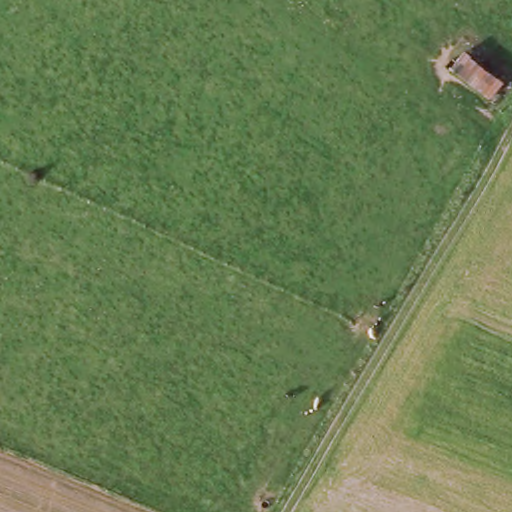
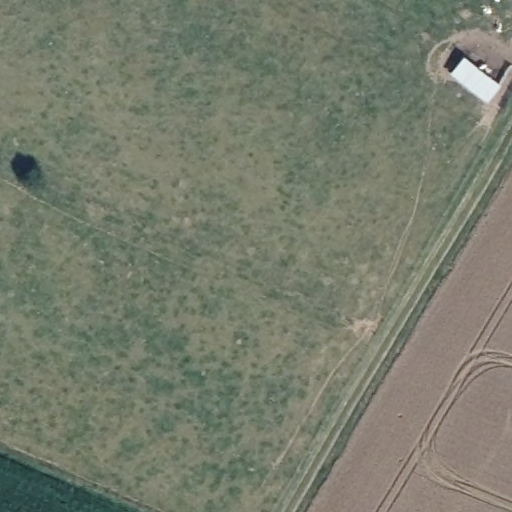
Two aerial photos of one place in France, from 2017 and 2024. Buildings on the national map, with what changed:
unchanged [(466,53),(486,68),(502,81),(488,101),(470,88),(450,72),(466,53)]

